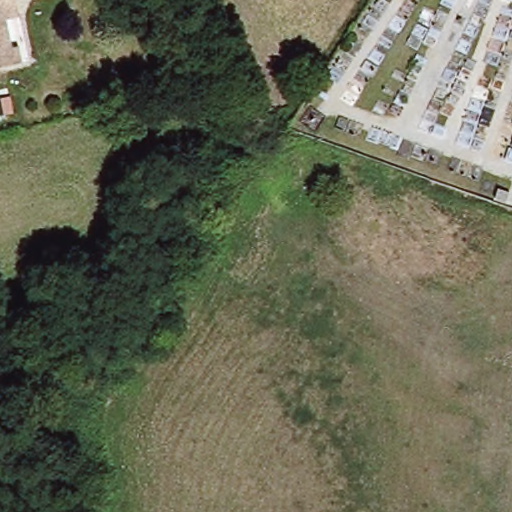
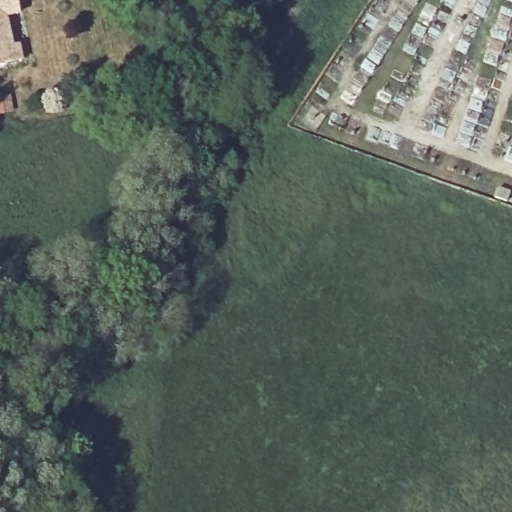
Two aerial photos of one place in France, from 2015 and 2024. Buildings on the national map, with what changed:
unchanged [(30,60),(16,62),(0,66),(0,0),(22,0),(24,13),(14,15),(19,44),(26,42),(30,60)]

